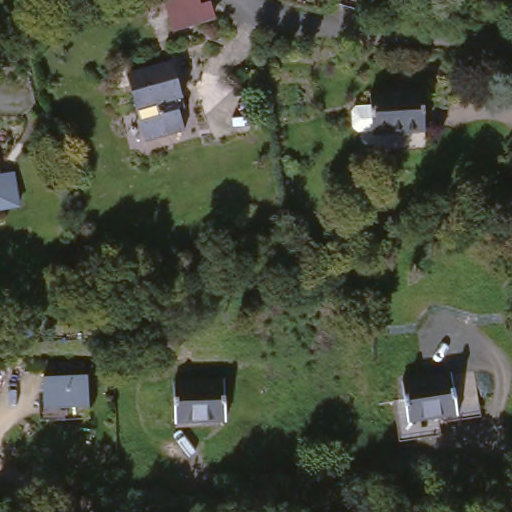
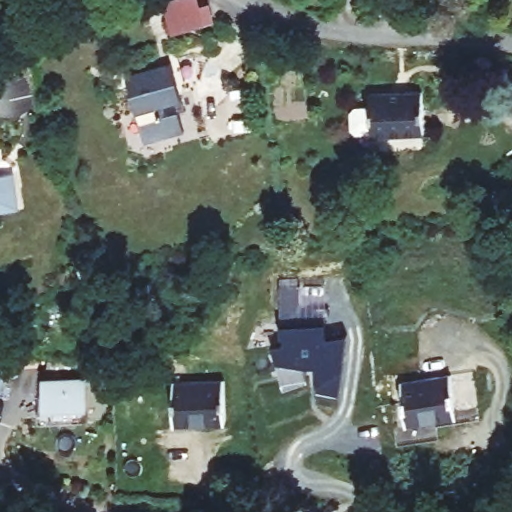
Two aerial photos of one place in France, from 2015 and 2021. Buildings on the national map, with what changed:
unchanged [(209,7),(213,21),(174,32),(166,4),(179,0),(198,0),(200,10),(209,7)]
unchanged [(190,110),(181,113),(186,130),(148,140),(128,71),(176,60),(190,110)]
unchanged [(430,129),(380,132),(380,127),(366,127),(361,123),(360,108),(365,102),(379,101),(378,91),(427,89),(430,129)]
unchanged [(15,169),(22,202),(0,206),(0,172),(15,169)]
new [(315,366),(303,368),(306,381),(284,386),(270,346),(283,343),(283,336),(280,336),(279,326),(325,324),(326,339),(344,337),(338,395),(317,393),(315,366)]
unchanged [(46,380),(52,380),(51,365),(88,363),(89,377),(91,377),(93,416),(49,420),(46,380)]
new [(3,371),(5,403),(0,403),(0,372),(3,371)]
unchanged [(410,421),(405,380),(455,373),(460,414),(410,421)]
unchanged [(179,420),(177,383),(226,381),(228,417),(179,420)]

